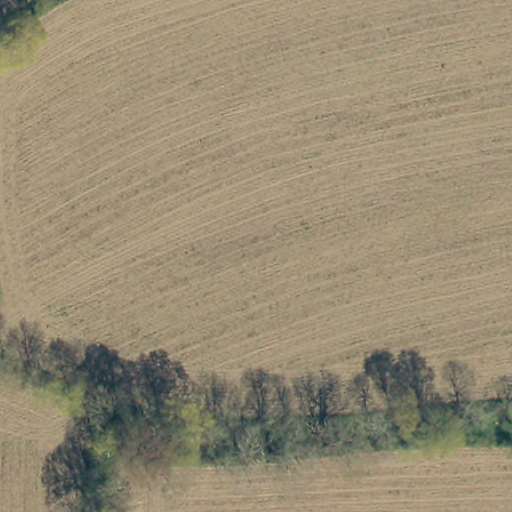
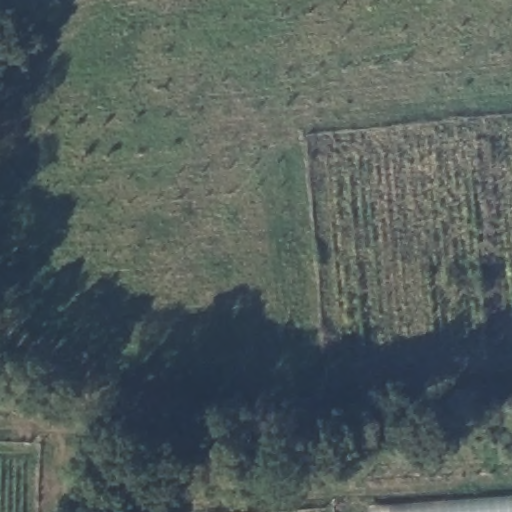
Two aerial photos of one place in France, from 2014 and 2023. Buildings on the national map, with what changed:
new [(367,505),(512,495),(512,512),(368,512),(367,505)]

